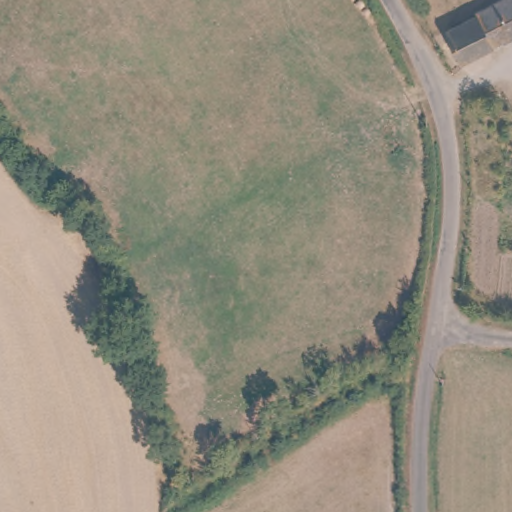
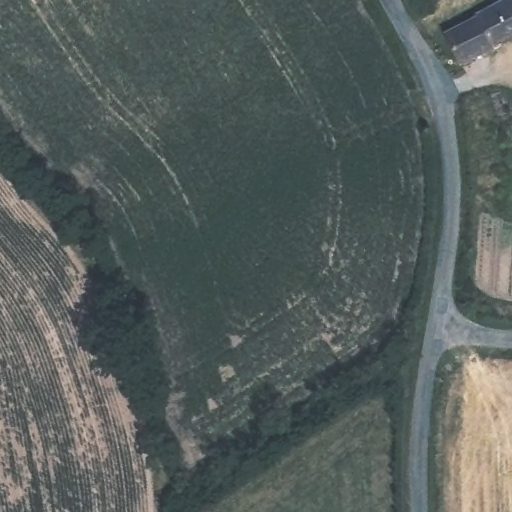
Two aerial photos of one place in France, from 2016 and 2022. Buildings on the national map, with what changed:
unchanged [(498,0),(512,0),(512,38),(459,64),(441,29),(498,0)]

